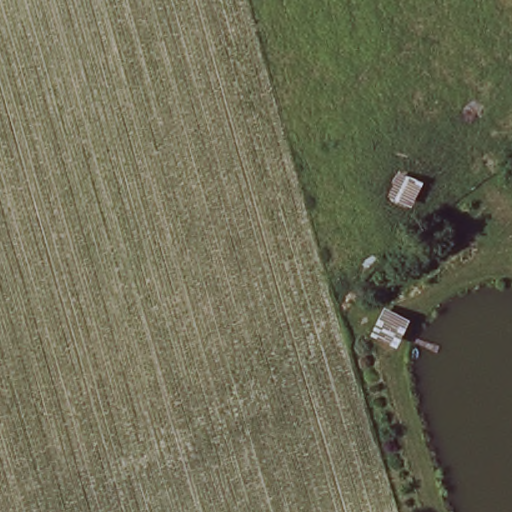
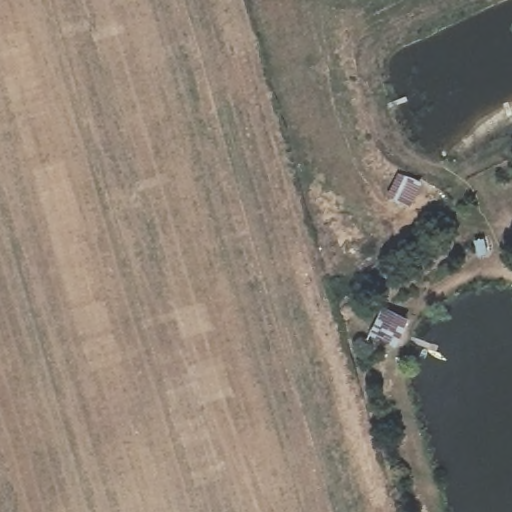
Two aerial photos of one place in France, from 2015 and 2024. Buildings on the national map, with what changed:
[]

